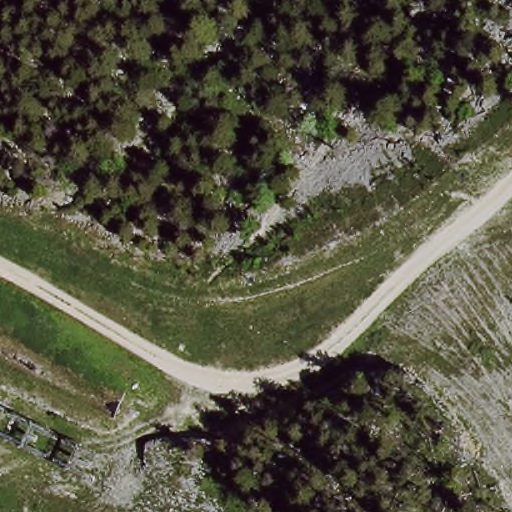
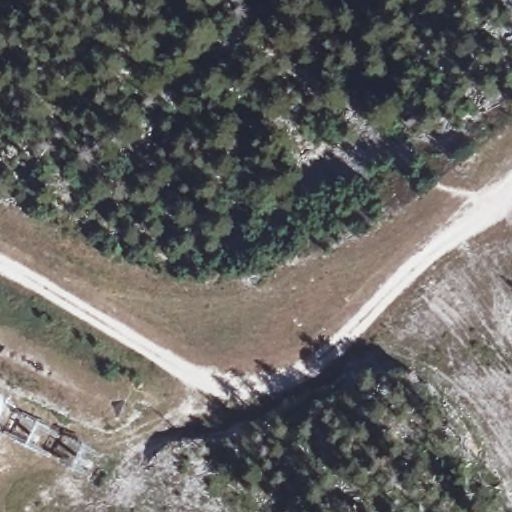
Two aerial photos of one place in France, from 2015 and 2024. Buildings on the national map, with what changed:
unchanged [(0,422),(0,396),(12,401),(0,422)]

